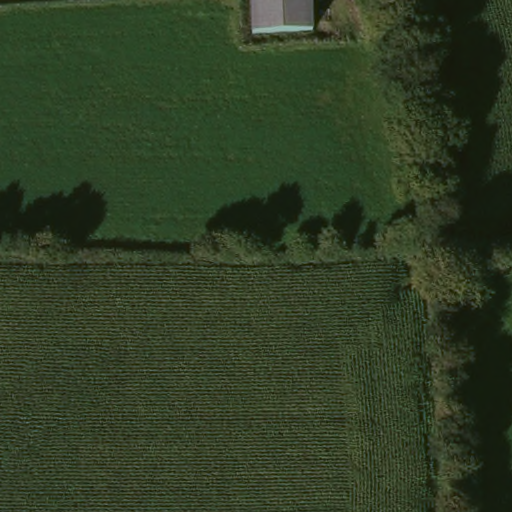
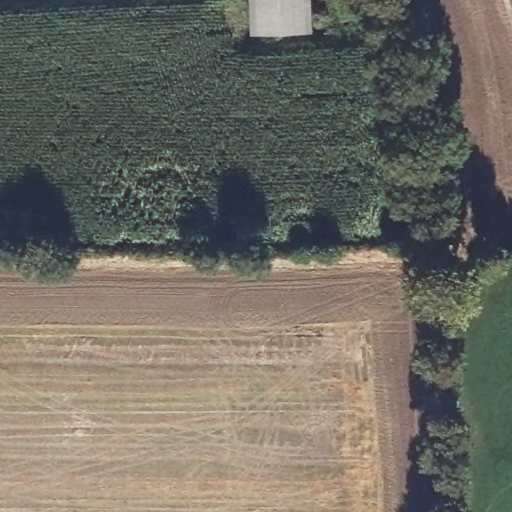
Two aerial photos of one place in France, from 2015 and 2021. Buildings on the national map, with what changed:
unchanged [(301,0),(303,37),(248,40),(247,0),(301,0)]

